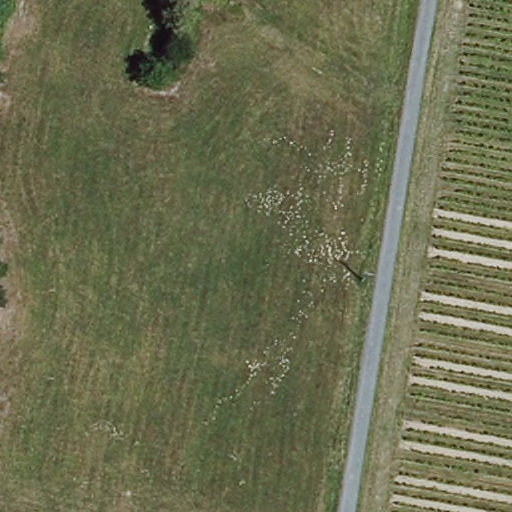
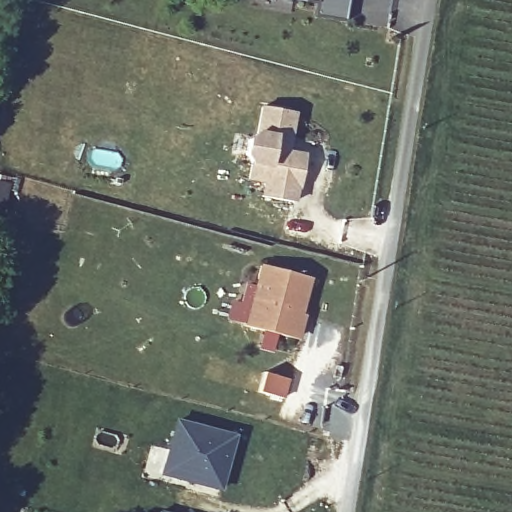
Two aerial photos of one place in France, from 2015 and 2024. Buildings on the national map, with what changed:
new [(316,15),(317,2),(301,0),(350,0),(347,20),(316,15)]
new [(249,138),(258,131),(262,104),(295,109),(291,134),(287,133),(285,148),(307,152),(302,184),(298,184),(296,200),(264,195),(267,179),(251,177),(253,161),(247,152),(249,138)]
new [(263,263),(312,275),(297,337),(248,323),(263,263)]
new [(237,435),(222,492),(160,474),(176,418),(237,435)]

